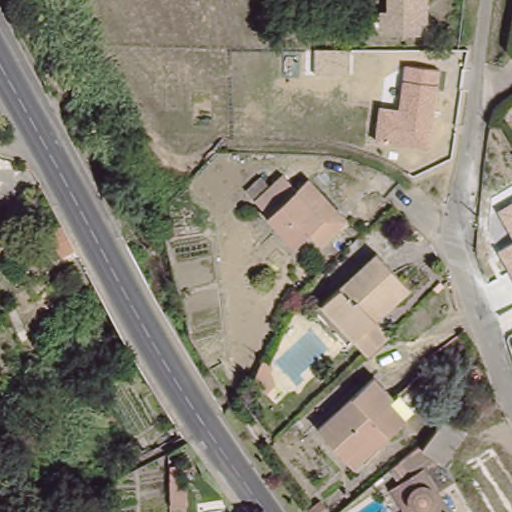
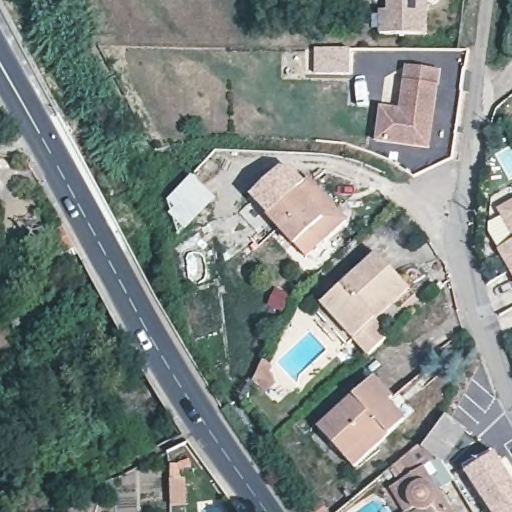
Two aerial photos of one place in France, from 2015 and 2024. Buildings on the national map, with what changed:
unchanged [(387,9),(387,0),(429,0),(428,35),(377,35),(378,10),(387,9)]
new [(355,52),(355,77),(320,77),(320,52),(355,52)]
unchanged [(380,108),(398,109),(405,67),(440,71),(430,150),(376,143),(380,108)]
unchanged [(352,236),(330,255),(317,242),(301,255),(264,213),(292,188),(305,202),(317,191),(342,219),(355,233),(352,236)]
unchanged [(498,209),(512,202),(512,234),(498,209)]
unchanged [(51,235),(67,227),(80,252),(65,259),(51,235)]
unchanged [(499,249),(512,241),(512,273),(499,249)]
unchanged [(390,337),(370,355),(366,351),(357,340),(324,304),(379,254),(411,290),(377,323),(384,330),(390,337)]
unchanged [(264,361),(275,367),(272,373),(276,375),(281,383),(275,394),(254,383),(264,361)]
unchanged [(312,432),(367,384),(385,403),(388,400),(405,419),(346,471),(312,432)]
unchanged [(393,494),(405,487),(400,481),(389,489),(383,481),(419,452),(424,456),(447,423),(465,436),(442,469),(454,486),(438,497),(448,512),(406,512),(393,494)]
unchanged [(151,433),(160,446),(150,451),(145,443),(100,473),(12,487),(0,490),(0,481),(5,479),(8,484),(15,484),(59,477),(97,470),(143,440),(142,438),(151,433)]
new [(489,448),(512,484),(512,512),(491,512),(462,466),(489,448)]
unchanged [(195,471),(195,473),(194,474),(193,476),(192,478),(191,478),(190,478),(188,478),(186,477),(185,476),(184,474),(184,472),(185,471),(182,464),(190,462),(192,468),(193,469),(195,471)]
unchanged [(181,479),(187,479),(189,506),(174,507),(172,465),(180,465),(181,479)]
unchanged [(106,492),(108,479),(121,476),(121,492),(106,492)]
unchanged [(310,511),(323,502),(331,512),(311,512),(310,511)]

